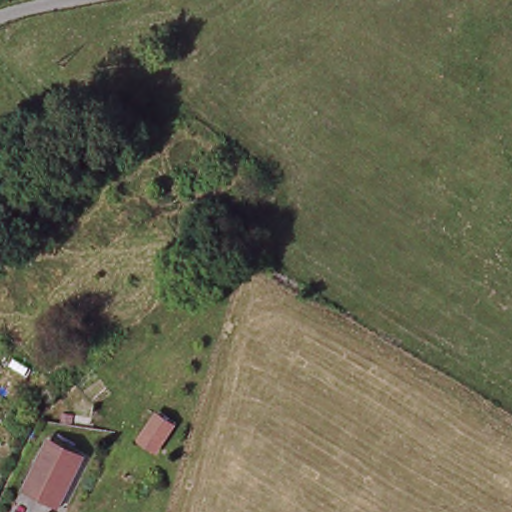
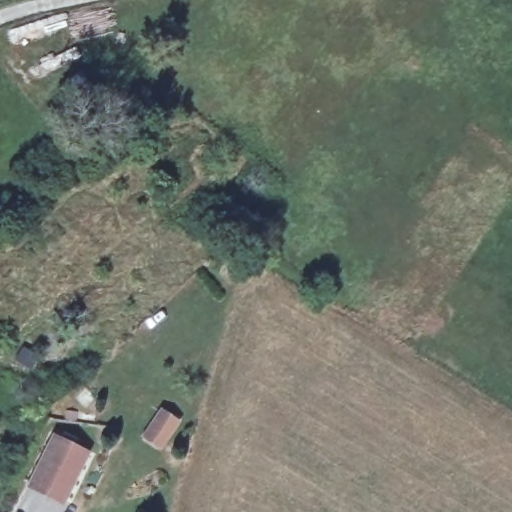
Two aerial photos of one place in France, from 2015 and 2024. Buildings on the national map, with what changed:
unchanged [(27,487),(53,442),(82,457),(57,504),(27,487)]

